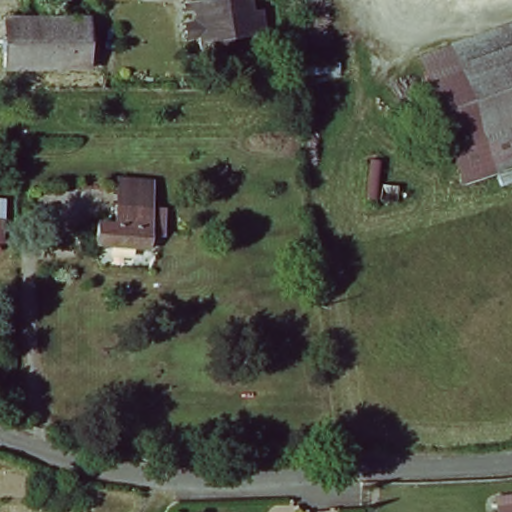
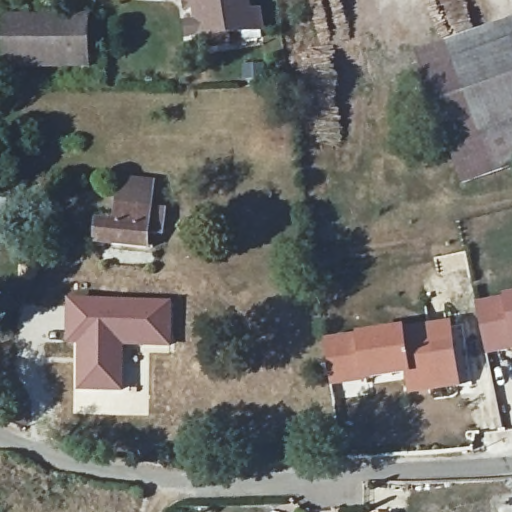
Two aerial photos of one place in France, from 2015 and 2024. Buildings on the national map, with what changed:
unchanged [(197,0),(248,0),(252,20),(212,29),(214,40),(192,44),(190,34),(183,3),(197,0)]
unchanged [(10,15),(87,17),(86,62),(8,61),(10,15)]
unchanged [(445,44),(512,17),(512,44),(453,66),(445,44)]
unchanged [(512,107),(474,120),(453,66),(512,44),(512,107)]
unchanged [(470,182),(428,72),(453,66),(474,120),(494,173),(470,182)]
unchanged [(474,120),(512,107),(512,166),(494,173),(474,120)]
unchanged [(156,179),(152,203),(167,205),(165,235),(153,234),(151,250),(92,244),(95,218),(112,219),(119,174),(156,179)]
new [(512,296),(512,352),(489,357),(477,304),(504,298),(512,296)]
new [(68,298),(173,300),(171,349),(125,348),(123,393),(76,392),(77,346),(62,344),(68,298)]
new [(359,337),(405,330),(452,324),(462,389),(410,398),(408,375),(363,384),(332,392),(326,340),(359,337)]

